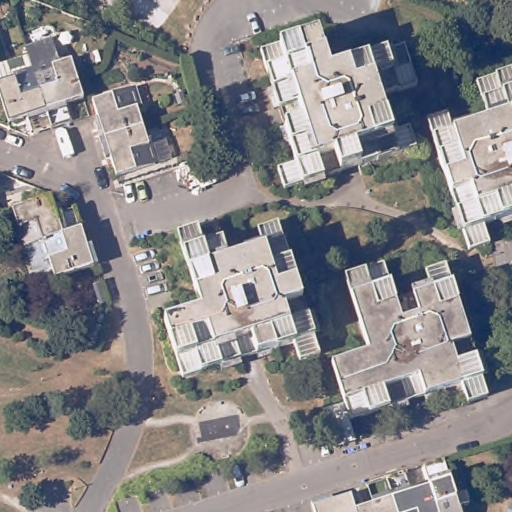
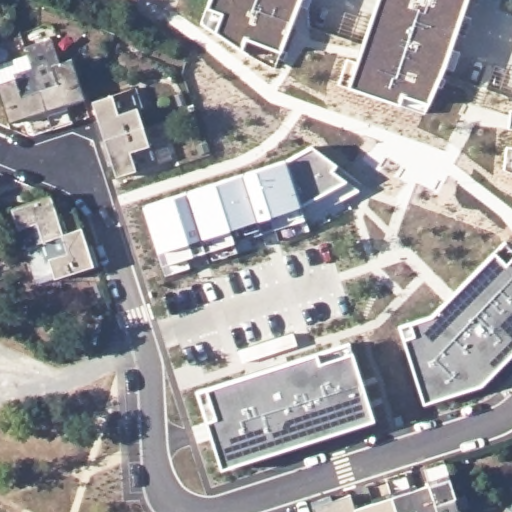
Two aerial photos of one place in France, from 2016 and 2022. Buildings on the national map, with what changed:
new [(274,69),(202,21),(210,0),(300,0),(274,69)]
new [(444,71),(421,122),(346,94),(377,0),(468,0),(444,71)]
demolished [(318,32),(331,69),(401,47),(414,84),(376,96),(389,133),(406,127),(413,147),(357,165),(352,151),(334,156),(339,171),(281,190),(274,168),(294,162),(289,145),(284,146),(278,127),(282,125),(258,51),(318,32)]
unchanged [(49,38),(59,61),(70,58),(76,78),(83,96),(61,103),(68,122),(52,128),(26,54),(24,47),(49,38)]
unchanged [(52,128),(30,136),(23,117),(6,123),(0,107),(0,62),(26,54),(52,128)]
demolished [(444,113),(451,132),(488,119),(476,82),(512,70),(512,72),(512,220),(499,224),(497,220),(480,225),(487,244),(466,251),(447,193),(461,189),(455,171),(441,175),(424,120),(444,113)]
unchanged [(96,119),(90,99),(133,85),(140,104),(135,106),(141,125),(100,138),(93,120),(96,119)]
unchanged [(141,125),(147,143),(164,138),(170,156),(117,174),(110,156),(105,157),(100,138),(141,125)]
new [(356,192),(303,217),(231,242),(236,252),(211,260),(206,249),(183,257),(188,267),(166,274),(160,264),(143,205),(283,161),(311,146),(336,166),(360,184),(356,192)]
unchanged [(0,196),(0,189),(3,195),(0,196)]
unchanged [(47,197),(54,214),(71,208),(76,210),(80,215),(76,216),(80,227),(36,242),(21,247),(16,249),(9,230),(15,227),(9,210),(47,197)]
demolished [(203,306),(179,233),(215,222),(228,258),(265,246),(260,228),(280,221),(299,276),(284,281),(290,300),(304,296),(323,352),(303,358),(296,341),(279,346),(280,350),(260,357),(258,352),(185,376),(165,318),(203,306)]
unchanged [(80,227),(87,247),(93,245),(99,264),(56,278),(35,285),(21,247),(36,242),(80,227)]
new [(512,252),(512,354),(484,383),(425,403),(403,341),(399,327),(412,322),(431,315),(495,251),(503,242),(512,252)]
demolished [(370,349),(345,276),(381,264),(394,301),(431,288),(425,271),(445,264),(464,318),(450,323),(456,342),(469,337),(488,393),(469,400),(463,382),(445,388),(445,392),(426,398),(424,395),(352,418),(332,361),(370,349)]
new [(350,344),(373,420),(221,467),(197,391),(350,344)]
unchanged [(454,497),(464,495),(467,503),(458,506),(459,512),(437,512),(429,485),(423,466),(442,459),(454,497)]
unchanged [(412,490),(429,485),(437,512),(395,512),(385,478),(404,472),(412,490)]
unchanged [(366,484),(385,478),(395,512),(354,512),(353,510),(372,503),(366,484)]
unchanged [(330,501),(348,495),(353,510),(354,512),(313,512),(310,503),(328,497),(330,501)]

